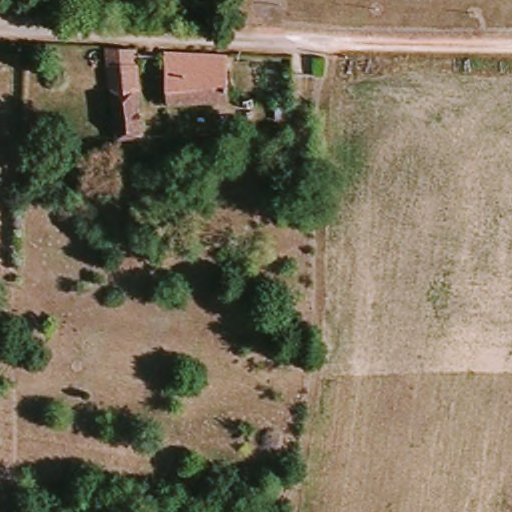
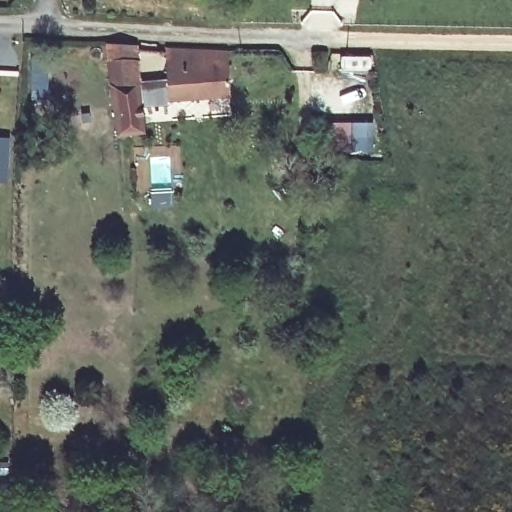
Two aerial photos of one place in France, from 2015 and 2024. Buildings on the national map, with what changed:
unchanged [(145,137),(119,138),(116,99),(110,44),(113,45),(132,46),(137,47),(145,137)]
unchanged [(171,48),(223,47),(230,109),(172,110),(167,48),(171,48)]
new [(10,137),(7,182),(0,182),(0,136),(10,137)]

